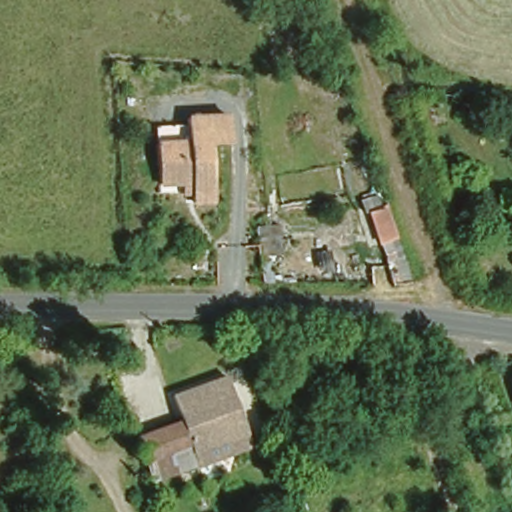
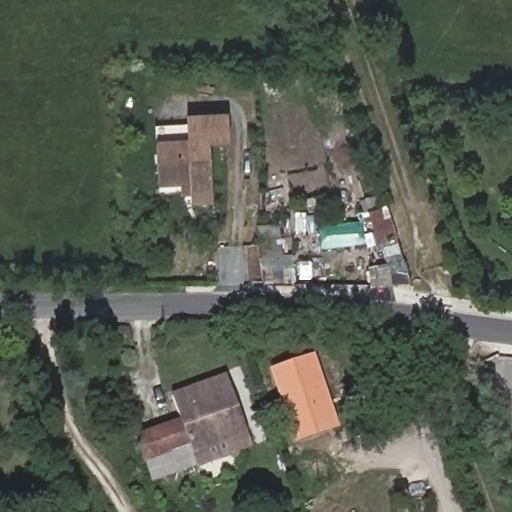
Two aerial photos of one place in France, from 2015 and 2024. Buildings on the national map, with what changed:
unchanged [(342,137),(332,105),(348,100),(358,131),(342,137)]
unchanged [(437,105),(443,123),(432,127),(426,108),(437,105)]
unchanged [(180,184),(160,185),(159,144),(158,128),(193,127),(193,120),(234,118),(234,142),(213,142),(214,206),(192,206),(192,194),(180,194),(180,184)]
unchanged [(375,198),(379,210),(382,209),(384,215),(387,226),(393,242),(374,248),(360,204),(375,198)]
new [(314,354),(339,428),(295,442),(270,369),(314,354)]
unchanged [(132,434),(176,418),(168,393),(222,371),(242,425),(237,428),(241,441),(149,477),(132,434)]
unchanged [(278,439),(295,485),(276,492),(260,445),(278,439)]
unchanged [(175,512),(172,499),(183,495),(188,511),(186,512),(175,512)]

